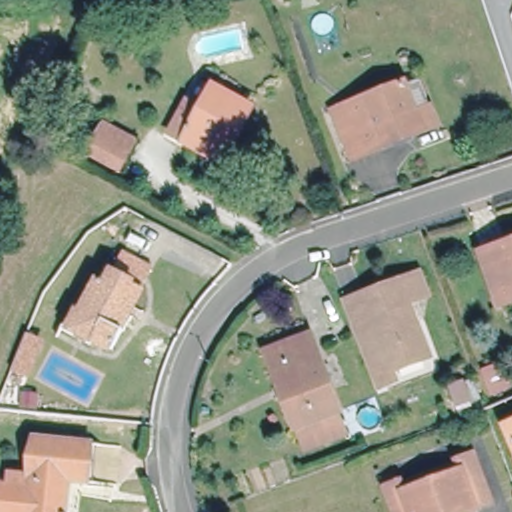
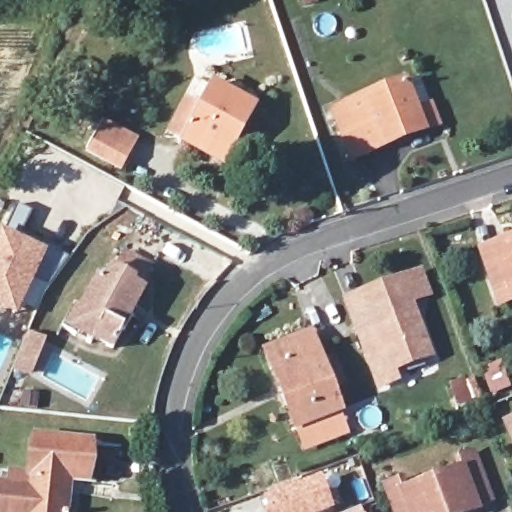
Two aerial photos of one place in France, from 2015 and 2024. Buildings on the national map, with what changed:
unchanged [(332,111),(403,85),(413,110),(428,105),(435,123),(421,129),(347,153),(332,111)]
unchanged [(180,147),(164,140),(183,107),(193,112),(209,87),(255,113),(231,154),(220,168),(180,147)]
unchanged [(100,122),(134,139),(122,165),(87,148),(100,122)]
new [(29,211),(20,232),(59,251),(57,254),(67,257),(46,287),(32,283),(17,318),(0,309),(0,232),(16,206),(29,211)]
unchanged [(512,242),(512,295),(496,300),(480,252),(512,242)]
unchanged [(120,341),(110,359),(89,348),(86,353),(56,337),(70,311),(80,317),(97,285),(106,290),(113,277),(121,260),(151,275),(139,298),(117,339),(120,341)]
unchanged [(420,288),(401,295),(426,351),(390,366),(394,377),(378,383),(360,339),(342,298),(356,293),(412,270),(420,288)]
unchanged [(299,439),(292,424),(264,351),(304,334),(335,408),(341,421),(299,439)]
new [(27,337),(43,343),(37,357),(22,350),(27,337)]
demolished [(9,354),(24,360),(11,392),(0,388),(0,376),(9,354)]
unchanged [(512,418),(512,452),(500,423),(512,418)]
unchanged [(22,486),(26,437),(91,445),(88,482),(69,481),(65,512),(0,512),(0,485),(22,486)]
unchanged [(384,492),(399,486),(403,499),(459,477),(455,463),(471,457),(488,504),(468,512),(391,512),(389,507),(384,492)]
new [(334,510),(329,512),(263,512),(259,499),(321,477),(334,510)]
new [(362,512),(346,512),(359,507),(362,512)]

